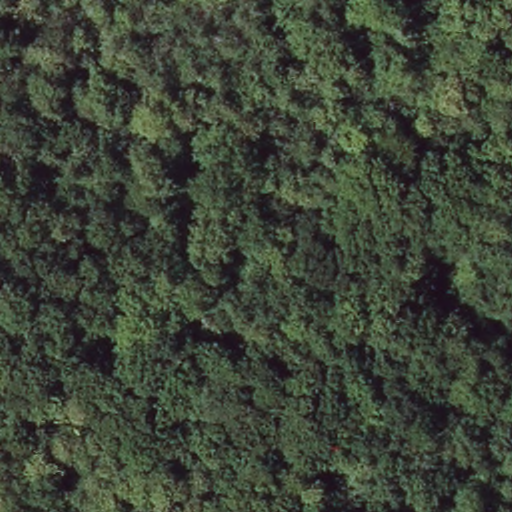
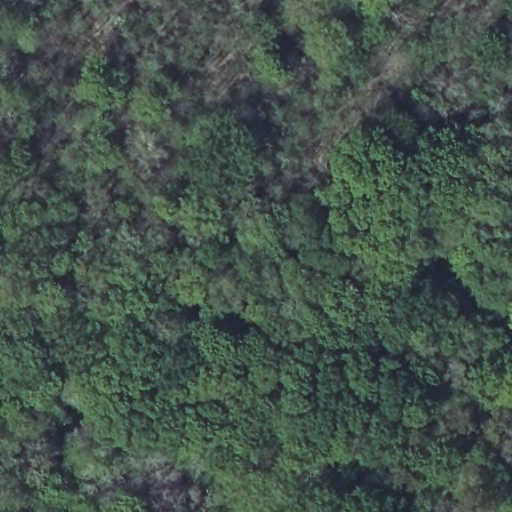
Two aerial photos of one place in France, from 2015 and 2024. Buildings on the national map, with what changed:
unchanged [(467,234),(512,204),(512,241),(485,260),(467,234)]

